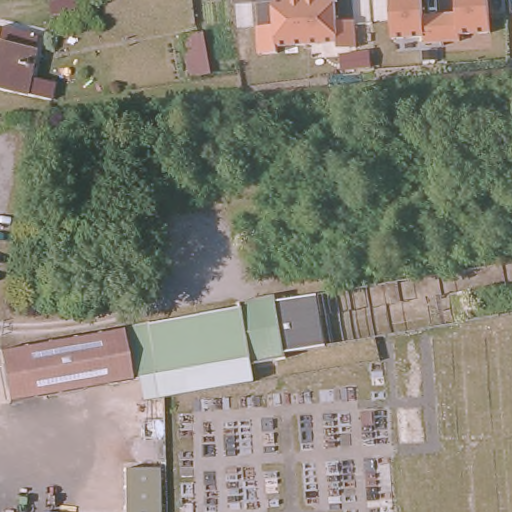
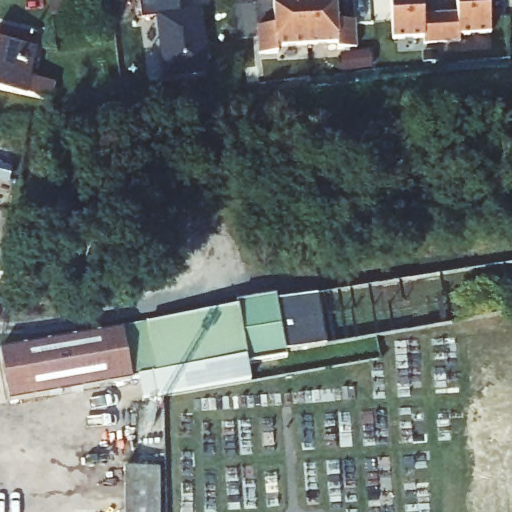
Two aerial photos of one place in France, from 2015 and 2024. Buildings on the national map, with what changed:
unchanged [(52,11),(50,0),(81,0),(83,7),(52,11)]
new [(141,0),(179,0),(180,11),(201,9),(210,74),(163,80),(156,17),(143,19),(141,0)]
unchanged [(337,0),(339,23),(354,21),(356,48),(336,49),(334,44),(283,47),(284,55),(260,56),(258,29),(274,27),(272,1),(290,0),(337,0)]
unchanged [(458,14),(456,0),(488,0),(489,36),(459,37),(459,44),(426,45),(424,40),(393,41),(390,0),(423,0),(424,16),(458,14)]
unchanged [(49,108),(25,103),(0,97),(0,36),(36,44),(28,84),(53,91),(49,108)]
demolished [(206,36),(213,82),(189,86),(181,41),(206,36)]
unchanged [(8,406),(0,360),(0,354),(13,352),(148,328),(236,312),(235,308),(276,301),(276,307),(311,301),(320,350),(284,356),(286,360),(245,367),(244,363),(131,384),(13,406),(8,406)]
unchanged [(161,399),(143,402),(141,382),(244,363),(245,367),(250,383),(161,399)]
unchanged [(158,512),(124,512),(123,467),(157,467),(158,512)]

